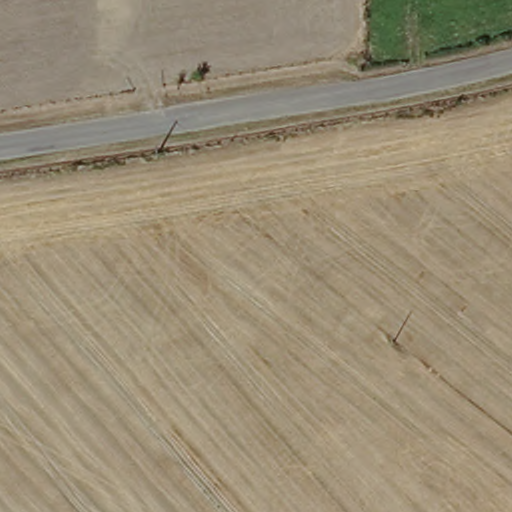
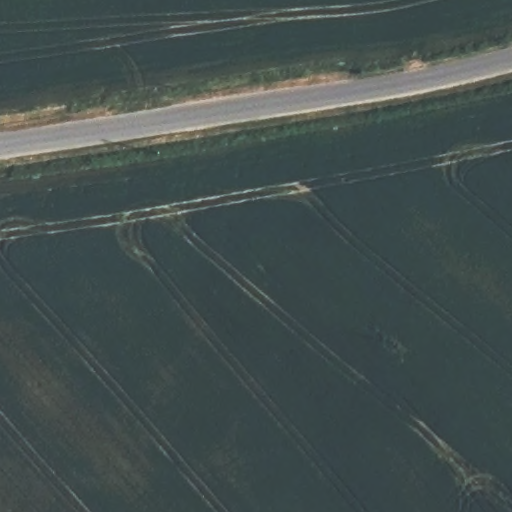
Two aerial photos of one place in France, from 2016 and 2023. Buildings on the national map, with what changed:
[]

